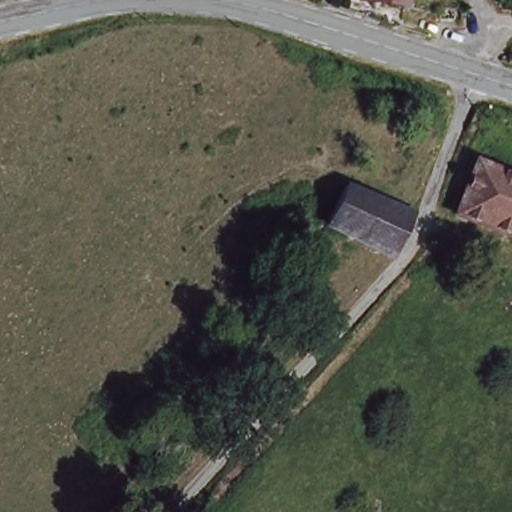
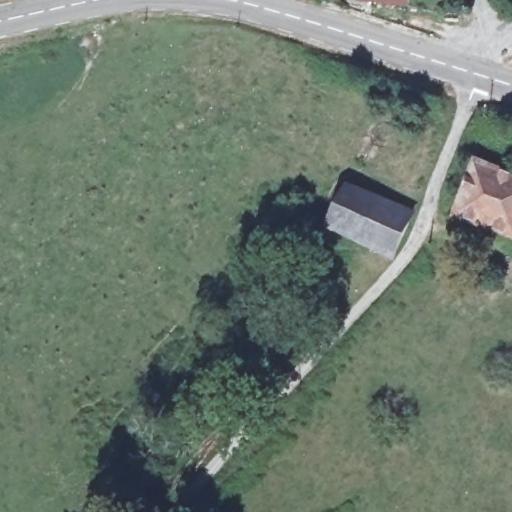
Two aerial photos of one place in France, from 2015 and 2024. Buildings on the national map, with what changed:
unchanged [(402,7),(360,5),(360,0),(404,0),(402,7)]
unchanged [(512,179),(512,240),(451,218),(473,165),(512,179)]
unchanged [(394,254),(331,224),(350,180),(413,209),(394,254)]

